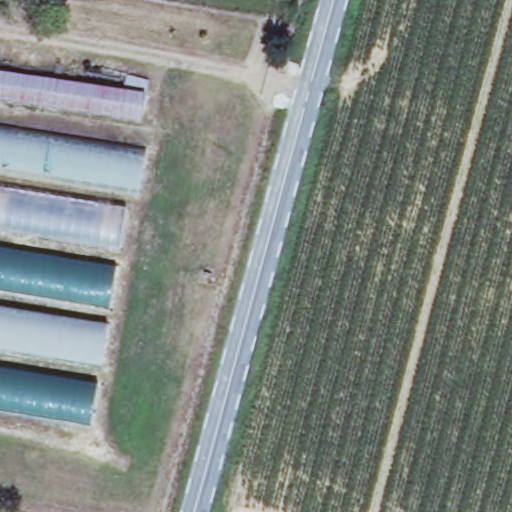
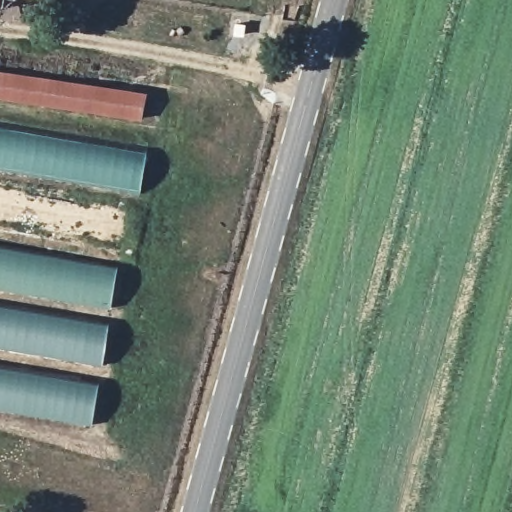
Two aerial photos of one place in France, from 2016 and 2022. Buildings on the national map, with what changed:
unchanged [(0,70),(149,91),(146,110),(143,121),(0,99),(0,70)]
unchanged [(0,126),(147,151),(140,189),(0,166),(0,126)]
unchanged [(0,185),(134,208),(130,230),(128,246),(0,225),(0,185)]
unchanged [(0,243),(121,266),(111,301),(0,283),(0,243)]
unchanged [(105,362),(0,345),(0,306),(110,324),(105,362)]
unchanged [(94,424),(0,408),(0,365),(102,381),(94,424)]

